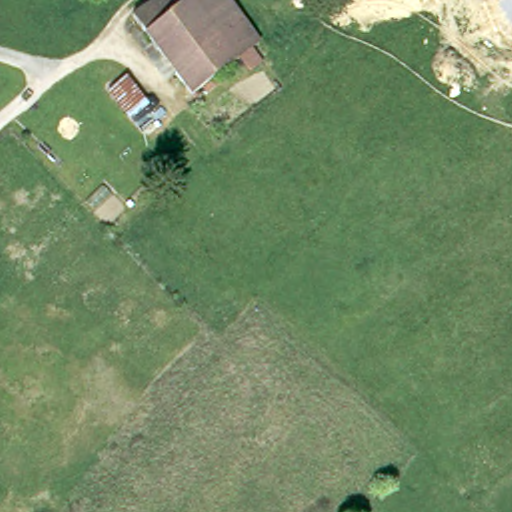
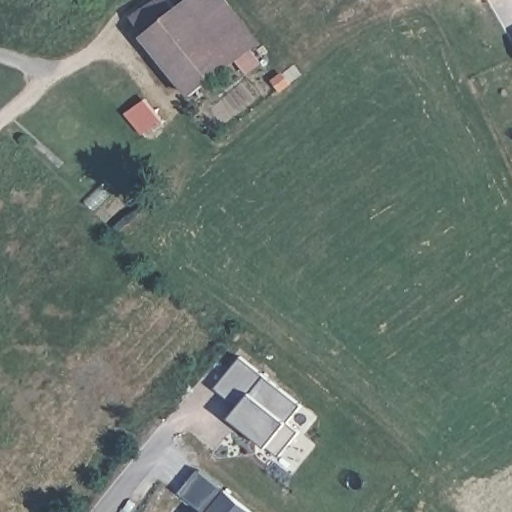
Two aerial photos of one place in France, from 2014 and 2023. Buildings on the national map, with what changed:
unchanged [(235,58),(195,89),(200,96),(193,102),(187,94),(125,15),(153,0),(164,0),(170,9),(182,0),(221,0),(237,20),(254,7),(269,25),(272,29),(255,41),(249,47),(260,61),(246,72),(235,58)]
unchanged [(145,100),(163,121),(147,134),(129,112),(145,100)]
new [(242,358),(300,405),(287,421),(299,432),(280,456),(267,446),(232,417),(241,406),(217,388),(242,358)]
new [(226,488),(254,512),(204,512),(205,510),(175,491),(197,465),(226,488)]

